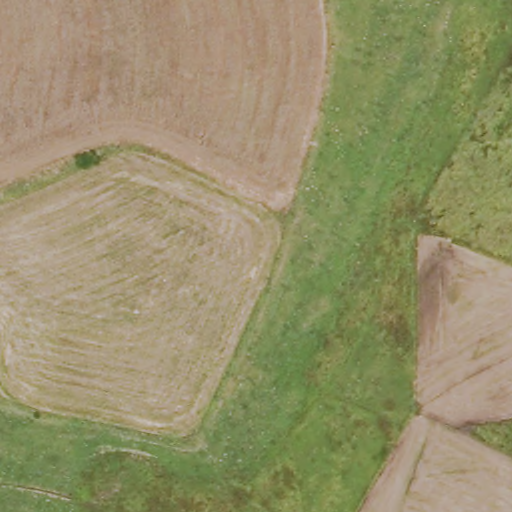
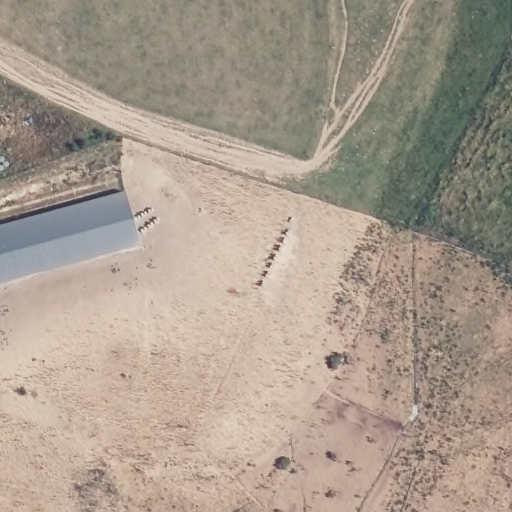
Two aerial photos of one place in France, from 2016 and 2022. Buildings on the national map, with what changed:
new [(140,243),(0,282),(0,226),(126,191),(140,243)]

